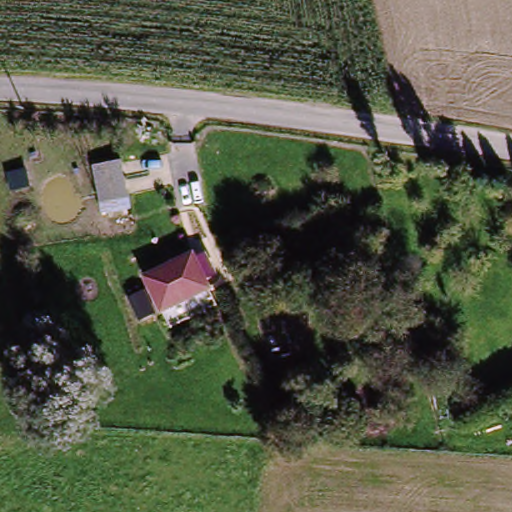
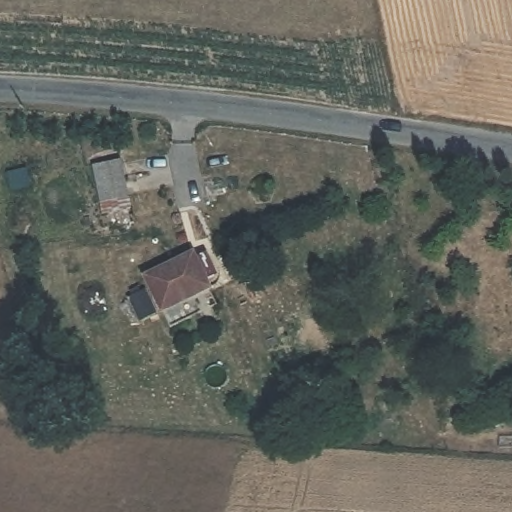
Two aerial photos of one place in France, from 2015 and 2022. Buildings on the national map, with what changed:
unchanged [(121,160),(129,199),(99,204),(94,164),(121,160)]
unchanged [(162,304),(146,272),(190,254),(205,250),(215,270),(205,275),(208,283),(162,304)]

